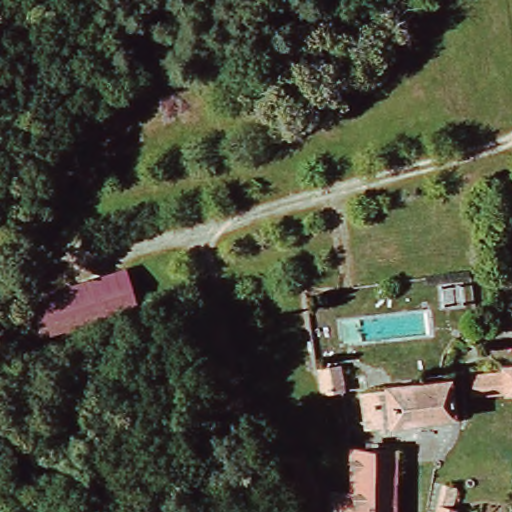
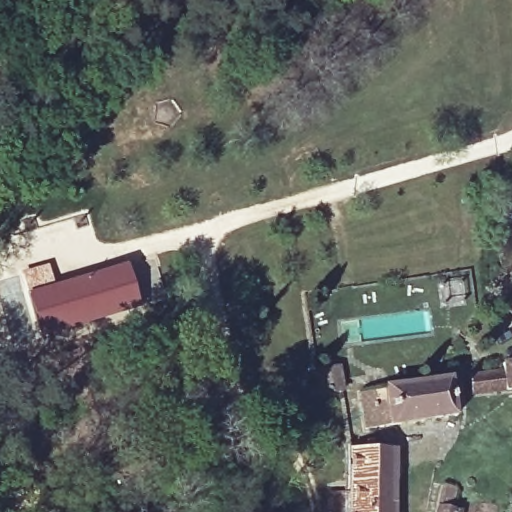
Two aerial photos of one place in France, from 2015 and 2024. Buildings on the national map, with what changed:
unchanged [(45,334),(42,325),(32,294),(129,264),(141,303),(94,318),(45,334)]
unchanged [(467,274),(472,297),(447,301),(443,278),(467,274)]
unchanged [(326,361),(344,357),(349,378),(330,384),(326,361)]
unchanged [(512,369),(512,397),(477,400),(476,378),(511,375),(512,369)]
unchanged [(382,394),(382,389),(452,381),(452,382),(457,421),(368,434),(363,397),(382,394)]
unchanged [(398,455),(397,512),(352,512),(352,497),(356,453),(398,455)]
unchanged [(439,512),(445,481),(458,484),(453,503),(461,504),(459,512),(439,512)]
unchanged [(352,497),(352,512),(331,512),(331,497),(352,497)]

